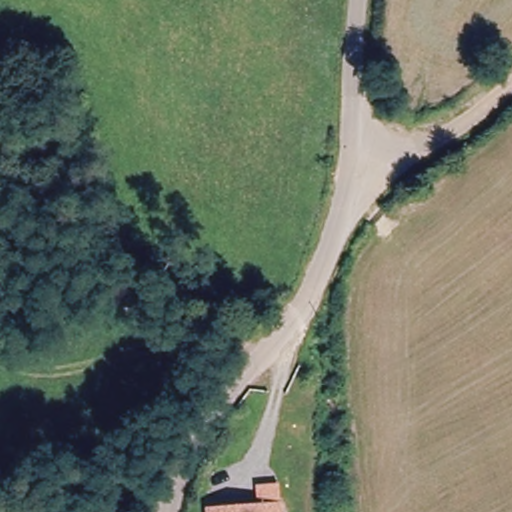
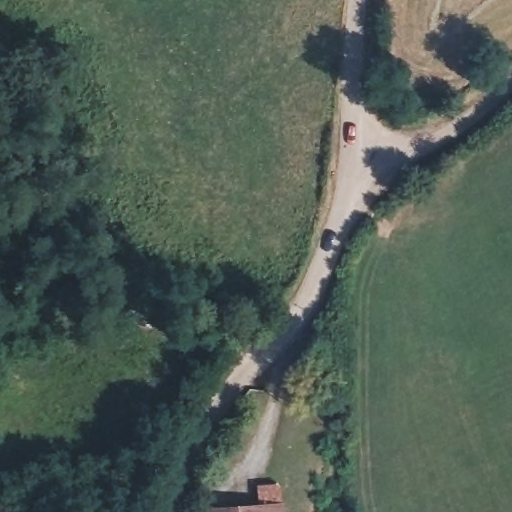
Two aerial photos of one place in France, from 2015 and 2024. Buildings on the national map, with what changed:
unchanged [(212,511),(283,508),(283,512),(212,512),(212,511)]

